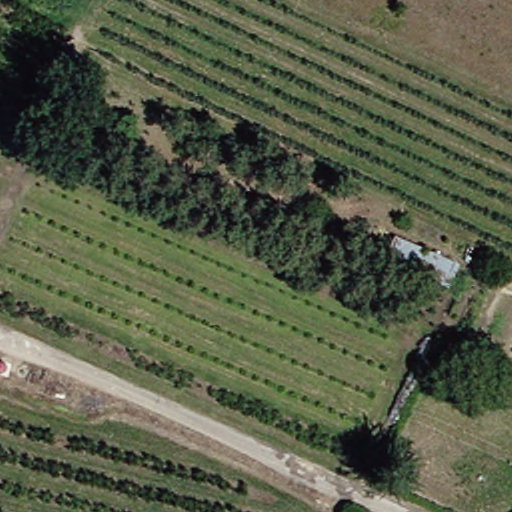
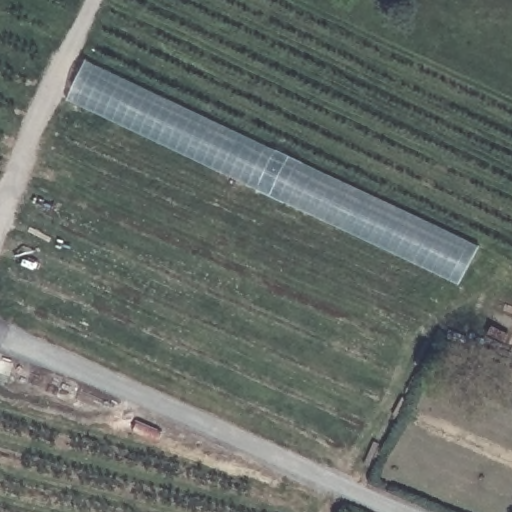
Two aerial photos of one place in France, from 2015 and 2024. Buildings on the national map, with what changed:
new [(459,285),(66,100),(85,60),(482,246),(459,285)]
demolished [(450,288),(387,260),(398,239),(461,267),(450,288)]

